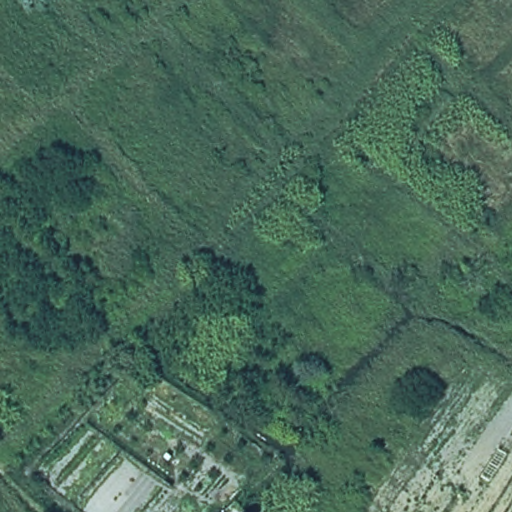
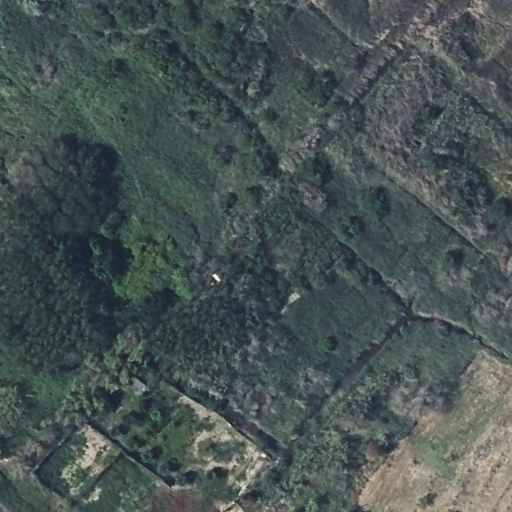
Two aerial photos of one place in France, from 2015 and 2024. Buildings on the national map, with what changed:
[]

